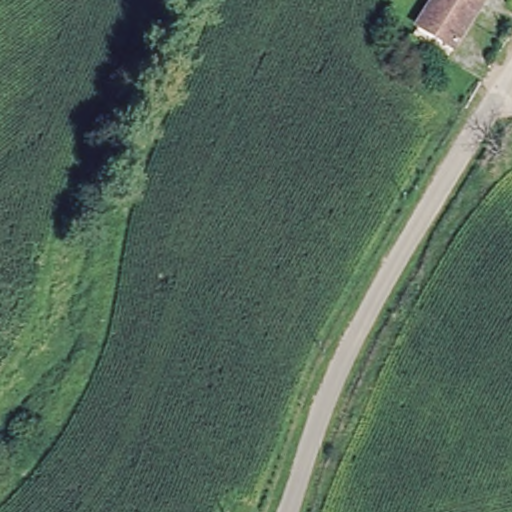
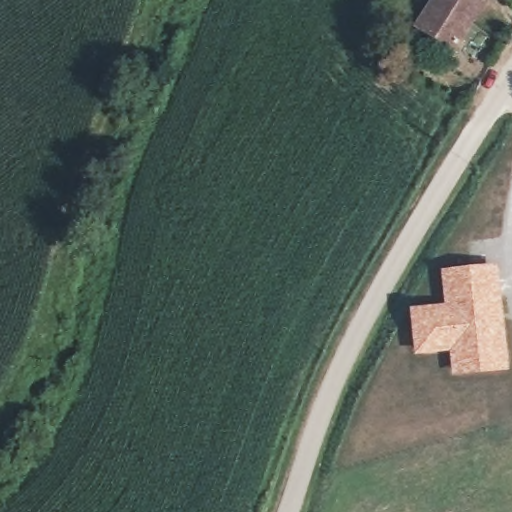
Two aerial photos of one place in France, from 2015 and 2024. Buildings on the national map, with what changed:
unchanged [(439,0),(481,0),(487,4),(453,55),(418,34),(432,11),(439,0)]
new [(442,302),(438,269),(497,265),(509,370),(451,377),(448,352),(413,355),(407,307),(442,302)]

